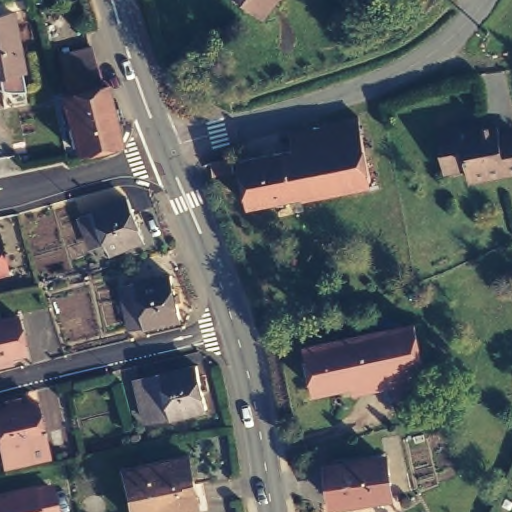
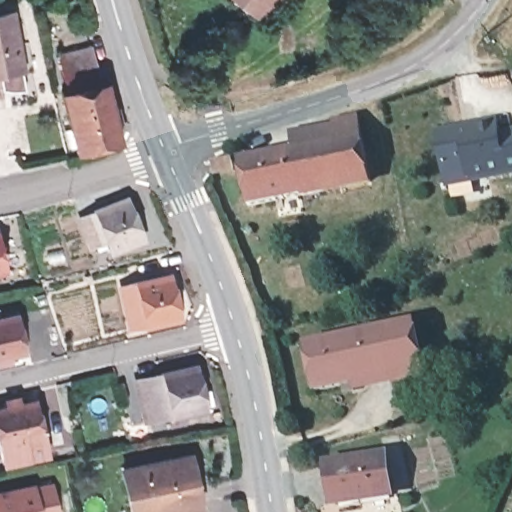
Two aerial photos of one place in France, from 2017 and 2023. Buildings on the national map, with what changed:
unchanged [(251,3),(249,0),(256,0),(253,2),(251,3)]
unchanged [(256,0),(274,0),(267,9),(256,0)]
unchanged [(0,73),(0,13),(11,11),(22,69),(0,73)]
unchanged [(121,120),(116,123),(120,143),(78,154),(62,96),(67,94),(60,59),(91,49),(100,85),(106,84),(112,108),(117,107),(121,120)]
unchanged [(432,95),(435,119),(418,119),(415,98),(432,95)]
unchanged [(237,159),(333,140),(330,120),(357,115),(368,178),(246,202),(237,159)]
unchanged [(512,127),(512,166),(465,173),(463,160),(440,163),(433,126),(458,123),(492,119),(493,123),(495,129),(512,127)]
unchanged [(195,164),(230,157),(232,167),(200,174),(195,164)]
unchanged [(130,194),(146,235),(113,248),(108,238),(96,242),(83,213),(130,194)]
unchanged [(0,265),(0,255),(2,265),(0,265)]
unchanged [(172,271),(182,314),(132,325),(123,282),(172,271)]
unchanged [(24,347),(8,352),(10,358),(0,360),(0,315),(17,312),(24,347)]
unchanged [(430,391),(398,399),(392,372),(317,387),(307,343),(415,323),(430,391)]
unchanged [(195,363),(204,406),(142,419),(134,376),(195,363)]
unchanged [(0,463),(0,402),(12,399),(13,407),(30,403),(42,454),(0,463)]
unchanged [(187,454),(197,503),(154,512),(131,512),(122,469),(187,454)]
unchanged [(393,455),(398,491),(344,499),(338,463),(393,455)]
unchanged [(60,512),(0,512),(0,492),(53,481),(60,512)]

